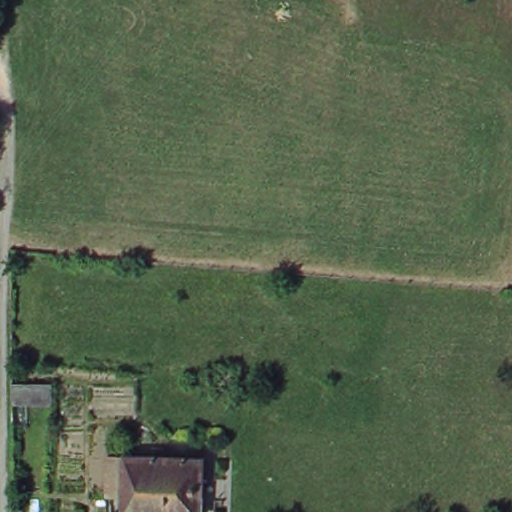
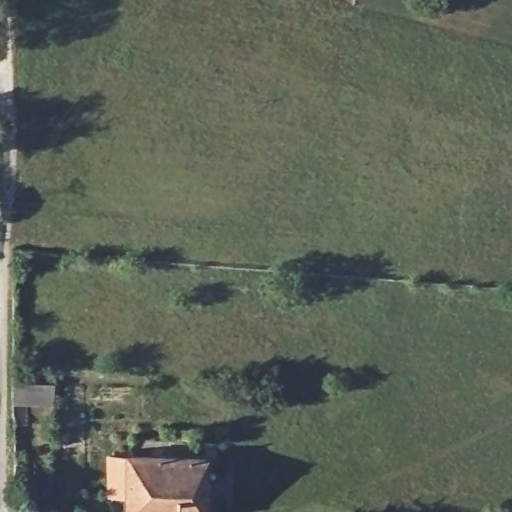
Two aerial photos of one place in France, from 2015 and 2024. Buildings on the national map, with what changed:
unchanged [(201,457),(200,512),(122,512),(122,457),(135,457),(201,457)]

